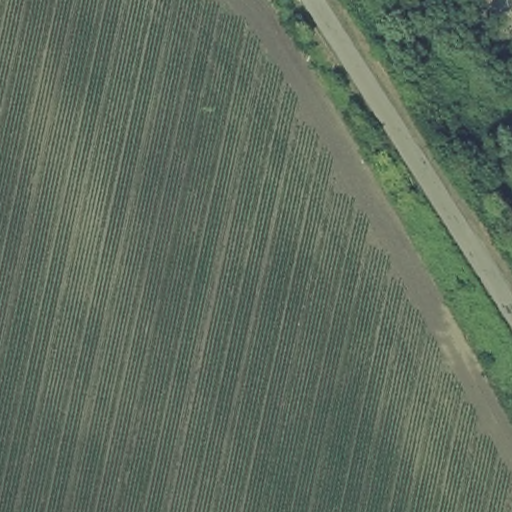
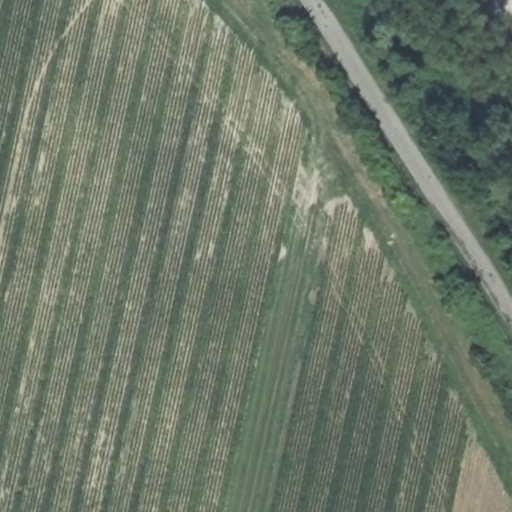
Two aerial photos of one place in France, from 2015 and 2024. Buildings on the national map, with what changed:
[]

